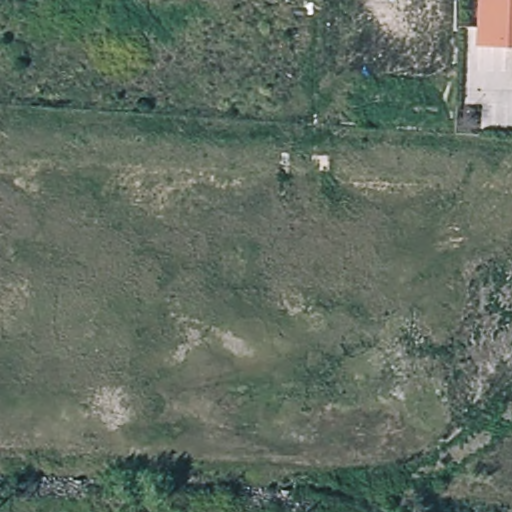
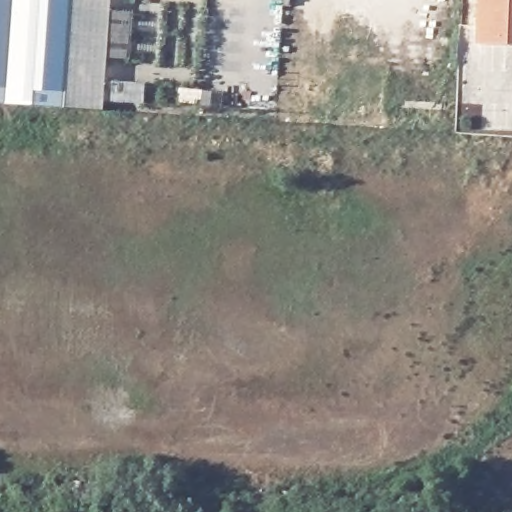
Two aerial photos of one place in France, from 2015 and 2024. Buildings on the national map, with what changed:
new [(0,104),(0,0),(73,0),(65,109),(0,104)]
new [(104,110),(65,109),(73,0),(111,0),(104,110)]
unchanged [(480,46),(482,0),(512,0),(512,47),(480,46)]

